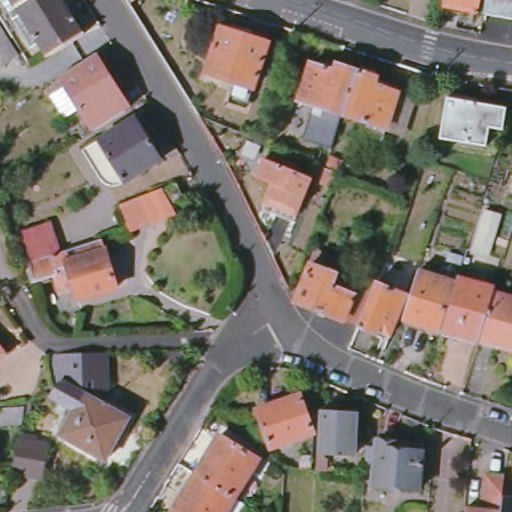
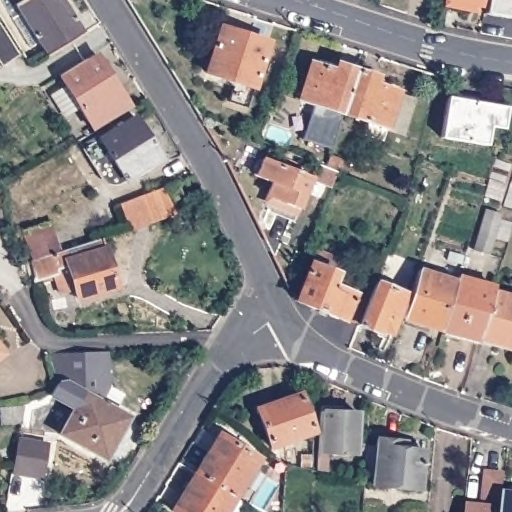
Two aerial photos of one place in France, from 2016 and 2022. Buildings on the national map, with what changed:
unchanged [(94,45),(58,67),(49,53),(41,59),(7,6),(16,0),(65,0),(94,45)]
unchanged [(477,11),(476,11),(475,17),(445,10),(446,4),(444,4),(444,0),(480,0),(477,11)]
unchanged [(484,19),(487,0),(512,0),(512,24),(484,19)]
unchanged [(1,67),(0,66),(0,26),(19,55),(1,67)]
unchanged [(209,70),(221,30),(268,44),(256,83),(209,70)]
unchanged [(55,95),(71,86),(65,76),(66,75),(101,54),(124,92),(120,95),(131,111),(99,131),(85,109),(69,118),(55,95)]
unchanged [(301,111),(310,66),(335,70),(337,65),(356,70),(344,121),(301,111)]
unchanged [(344,121),(356,70),(375,73),(374,78),(397,84),(417,87),(407,133),(387,130),(344,121)]
unchanged [(441,137),(450,98),(502,108),(498,129),(490,127),(486,146),(441,137)]
unchanged [(161,159),(125,182),(112,161),(97,170),(84,149),(135,117),(161,159)]
unchanged [(279,207),(282,196),(268,192),(271,182),(256,176),(262,159),(311,177),(297,214),(279,207)]
unchanged [(334,169),(339,171),(333,185),(315,179),(321,164),(334,169)]
unchanged [(182,197),(174,202),(167,188),(176,184),(182,197)]
unchanged [(176,213),(129,230),(120,204),(162,188),(171,204),(176,213)]
unchanged [(471,250),(482,209),(497,213),(486,253),(471,250)]
unchanged [(82,299),(80,290),(66,294),(61,275),(37,283),(37,282),(35,283),(30,263),(35,261),(36,261),(26,232),(55,222),(65,252),(107,239),(122,287),(82,299)]
unchanged [(361,325),(300,301),(314,264),(375,287),(361,325)]
unchanged [(445,329),(405,319),(420,272),(457,282),(445,329)]
unchanged [(375,287),(380,277),(411,288),(395,331),(382,326),(379,331),(361,325),(375,287)]
unchanged [(460,277),(497,288),(497,291),(482,339),(445,329),(457,282),(460,277)]
unchanged [(482,339),(497,291),(512,295),(512,347),(482,339)]
unchanged [(0,362),(0,341),(10,354),(0,362)]
unchanged [(131,420),(107,463),(62,438),(76,412),(52,399),(58,388),(51,359),(51,357),(108,356),(110,390),(102,404),(131,420)]
unchanged [(314,435),(272,451),(259,413),(299,398),(314,435)]
unchanged [(1,423),(0,415),(0,408),(25,407),(22,422),(1,423)]
unchanged [(320,410),(359,413),(357,464),(320,462),(320,410)]
unchanged [(197,474),(222,434),(261,458),(237,498),(197,474)]
unchanged [(42,479),(12,473),(18,439),(47,444),(42,479)]
unchanged [(376,483),(381,443),(420,446),(420,451),(424,452),(421,487),(376,483)]
unchanged [(510,512),(475,512),(476,497),(477,497),(493,499),(495,489),(497,463),(512,465),(512,498),(510,512)]
unchanged [(228,512),(177,512),(175,510),(197,474),(237,498),(228,512)]
unchanged [(510,512),(512,498),(512,512),(510,512)]

